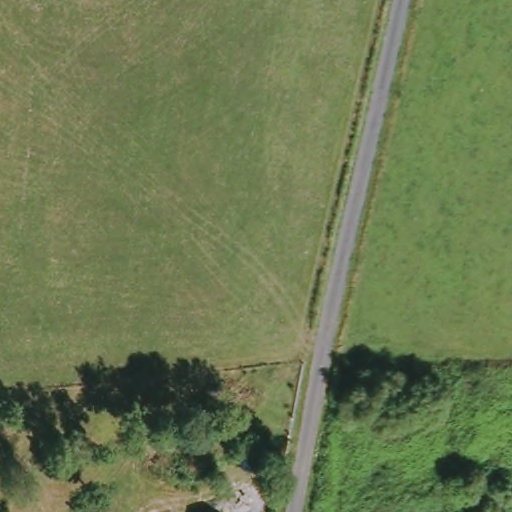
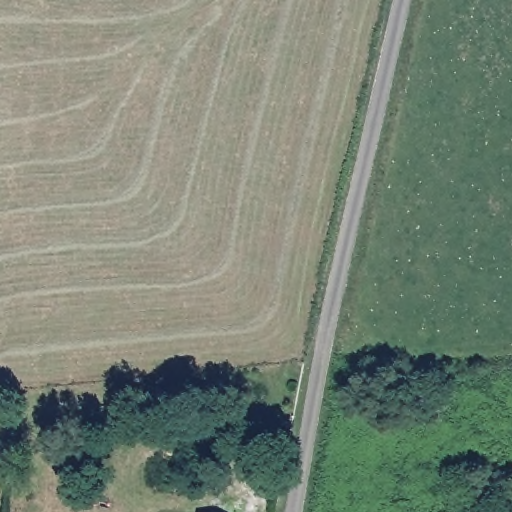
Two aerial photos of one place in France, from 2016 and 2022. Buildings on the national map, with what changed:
[]

